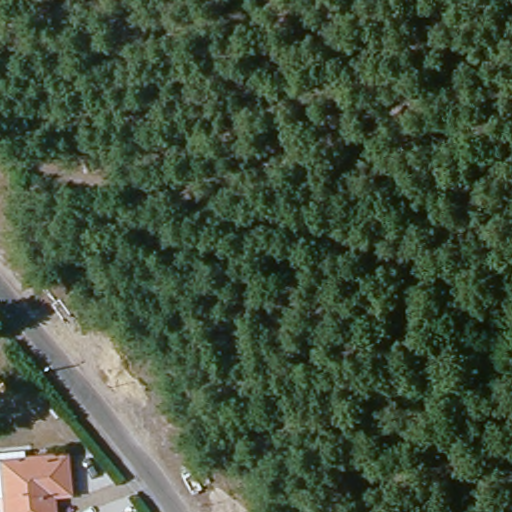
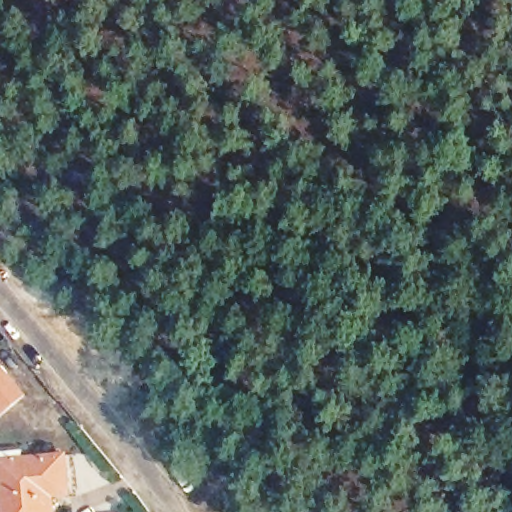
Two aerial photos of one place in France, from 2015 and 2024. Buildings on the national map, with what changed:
new [(22,391),(2,407),(0,404),(0,365),(22,391)]
unchanged [(67,451),(69,478),(70,489),(53,490),(54,512),(10,512),(5,456),(67,451)]

